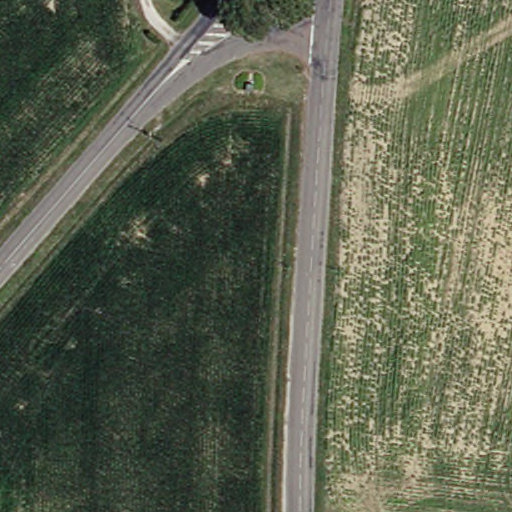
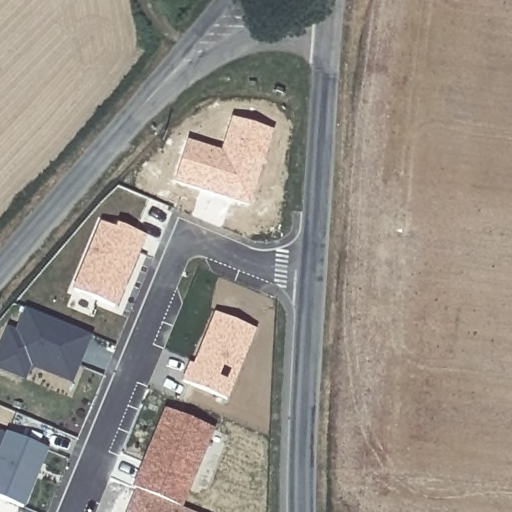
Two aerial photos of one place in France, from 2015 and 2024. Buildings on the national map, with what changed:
new [(186,140),(221,151),(230,117),(274,130),(249,205),(174,183),(186,140)]
new [(117,308),(71,290),(100,222),(115,229),(117,225),(146,237),(117,308)]
new [(227,400),(182,379),(188,362),(193,364),(214,312),(257,331),(227,400)]
new [(21,368),(17,376),(0,370),(0,354),(8,331),(15,334),(22,313),(89,338),(71,384),(21,368)]
new [(192,512),(125,512),(135,489),(131,486),(164,408),(215,429),(182,507),(192,512)]
new [(25,508),(0,498),(0,443),(5,431),(49,449),(25,508)]

